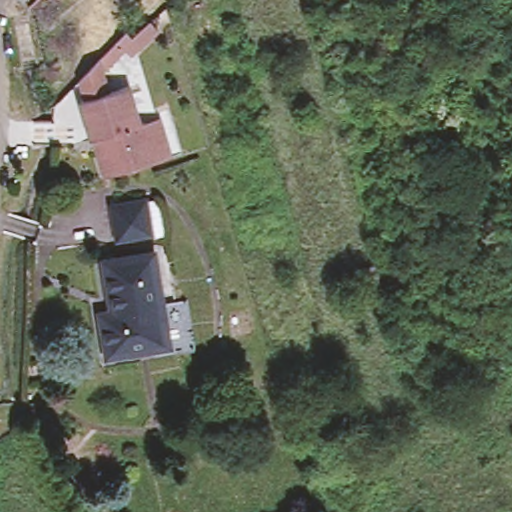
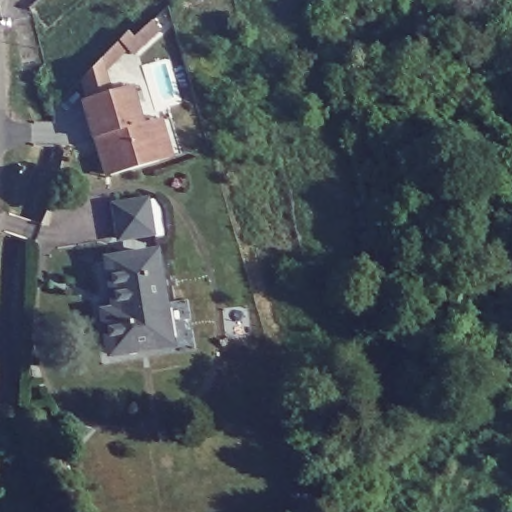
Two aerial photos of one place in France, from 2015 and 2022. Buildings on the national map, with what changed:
unchanged [(92,140),(80,103),(84,101),(81,79),(102,58),(118,40),(127,49),(122,54),(104,74),(107,95),(129,88),(140,124),(143,123),(146,122),(159,118),(170,158),(158,162),(109,177),(104,179),(99,162),(92,140)]
unchanged [(145,201),(151,234),(120,240),(114,207),(145,201)]
unchanged [(107,356),(92,304),(104,302),(95,252),(156,244),(163,300),(179,298),(183,332),(168,333),(170,344),(107,356)]

